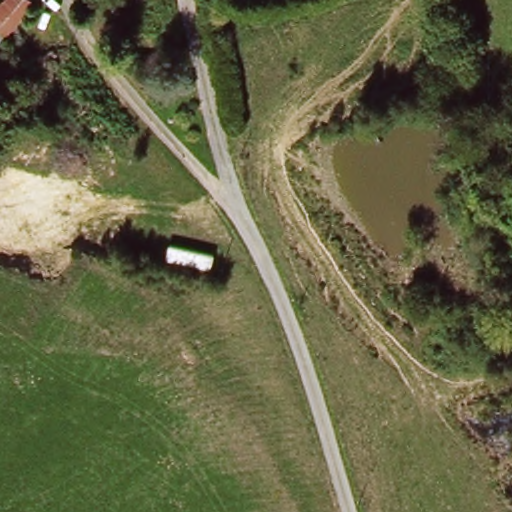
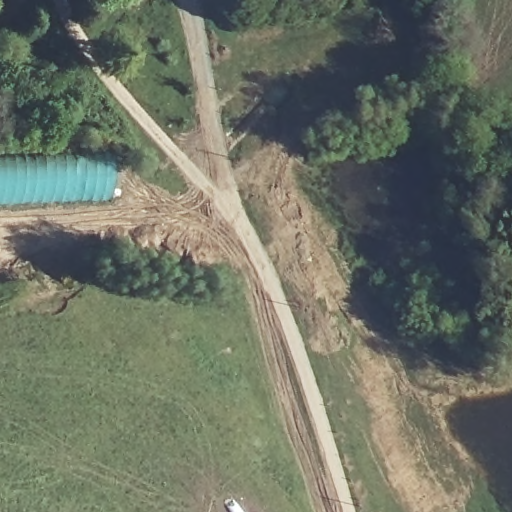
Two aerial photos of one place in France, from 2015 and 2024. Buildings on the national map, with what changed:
unchanged [(34,12),(0,50),(0,8),(8,0),(20,0),(34,12)]
new [(111,201),(0,205),(0,154),(110,151),(111,201)]

